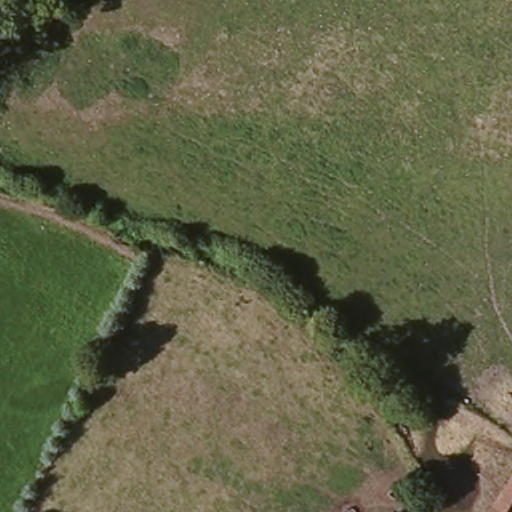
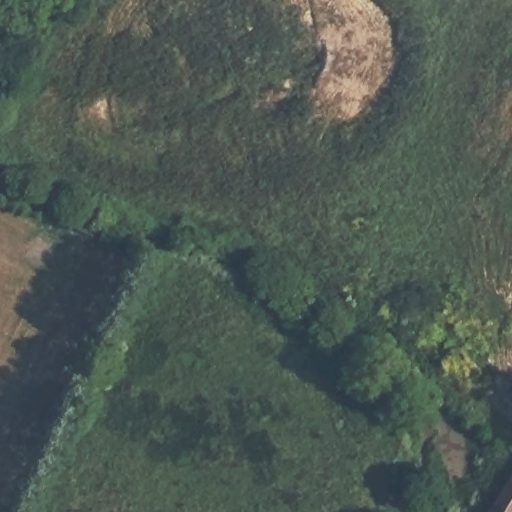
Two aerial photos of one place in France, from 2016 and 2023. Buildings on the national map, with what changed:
unchanged [(512,512),(483,512),(512,464),(512,512)]

